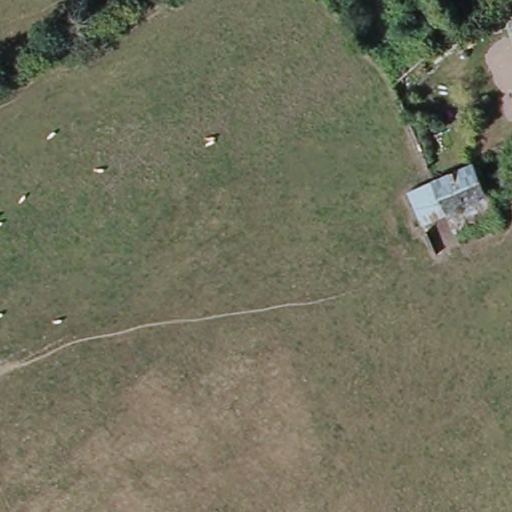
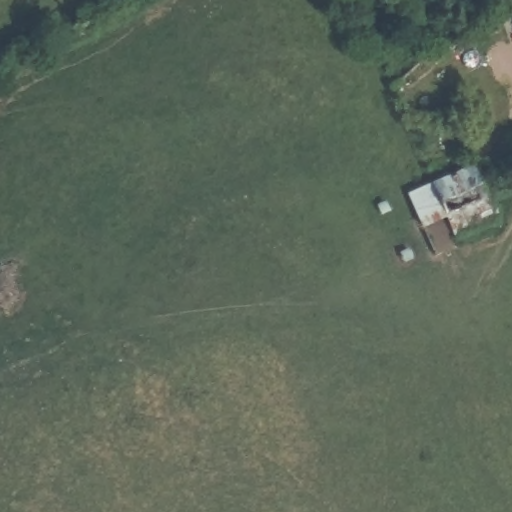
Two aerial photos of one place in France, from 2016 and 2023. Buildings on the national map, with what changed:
unchanged [(512,2),(511,0),(512,0),(512,2)]
unchanged [(456,25),(468,36),(397,101),(390,85),(456,25)]
unchanged [(443,214),(430,182),(473,166),(476,176),(512,163),(512,185),(485,196),(443,214)]
unchanged [(443,214),(444,216),(419,227),(405,192),(430,182),(443,214)]
unchanged [(493,215),(473,226),(451,235),(444,216),(443,214),(485,196),(493,215)]

